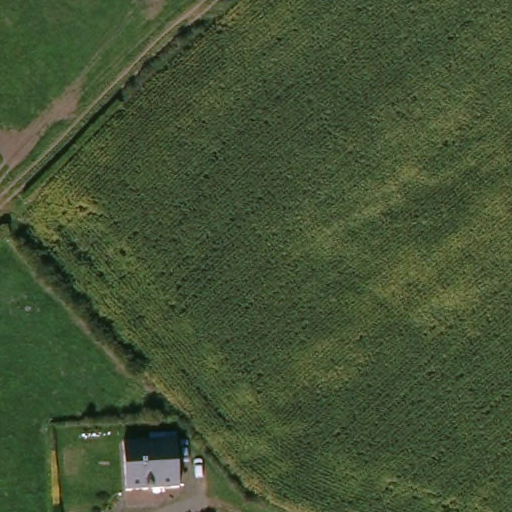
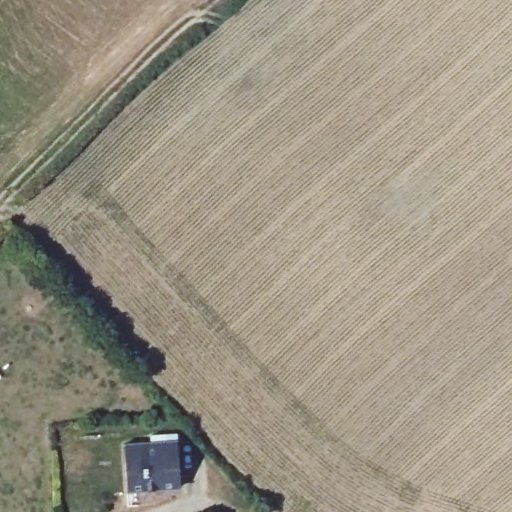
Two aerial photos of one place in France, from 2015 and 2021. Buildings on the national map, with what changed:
unchanged [(126,494),(123,447),(176,444),(180,490),(126,494)]

